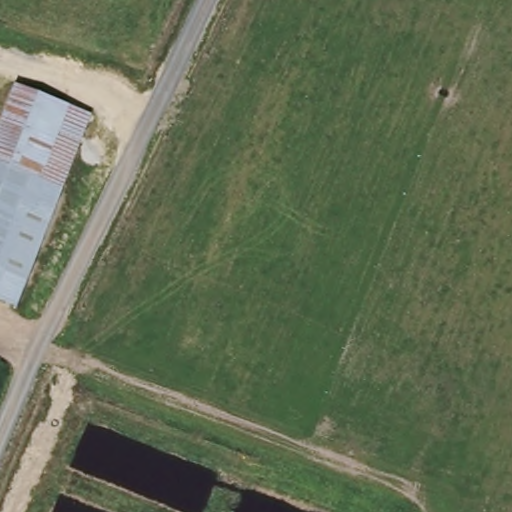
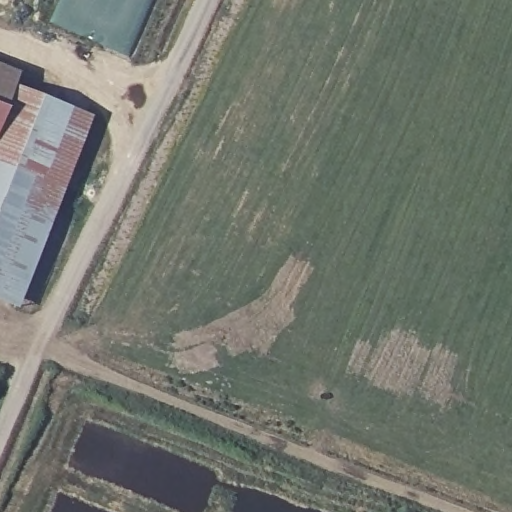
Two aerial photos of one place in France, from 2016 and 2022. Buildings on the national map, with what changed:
new [(14,87),(0,125),(0,64),(20,72),(14,87)]
unchanged [(89,115),(63,187),(0,162),(0,125),(14,87),(89,115)]
unchanged [(26,290),(0,279),(0,162),(63,187),(26,290)]
unchanged [(19,310),(0,303),(0,279),(26,290),(19,310)]

